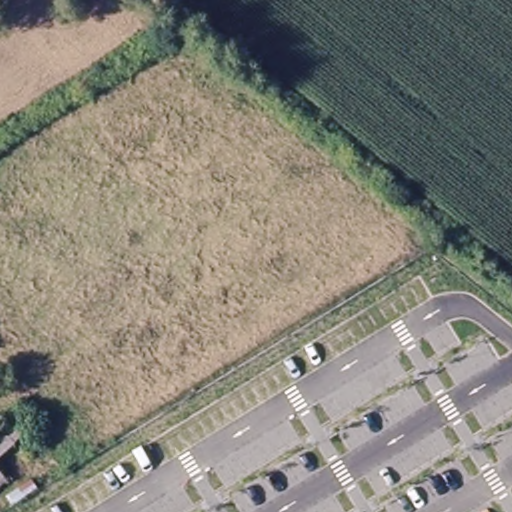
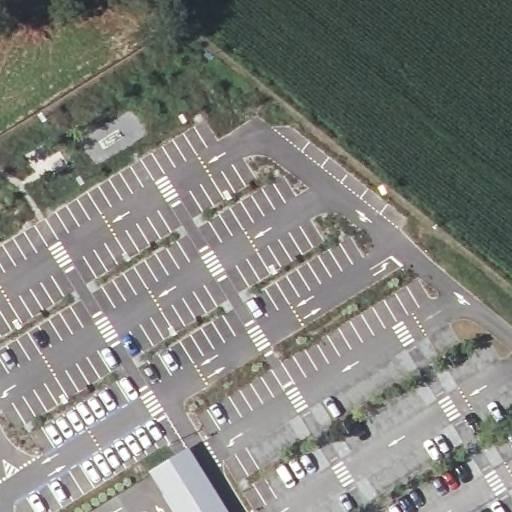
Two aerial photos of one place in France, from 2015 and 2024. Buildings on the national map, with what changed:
new [(188,447),(228,512),(172,512),(147,472),(188,447)]
demolished [(0,489),(0,473),(8,482),(0,489)]

